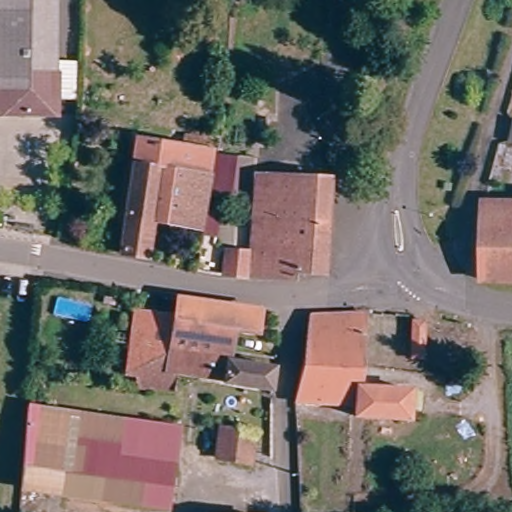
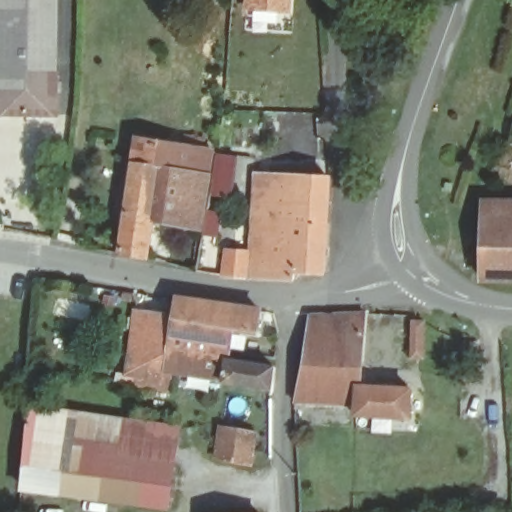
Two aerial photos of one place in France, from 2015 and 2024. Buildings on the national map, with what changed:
unchanged [(53,117),(0,116),(0,0),(55,0),(54,24),(53,117)]
new [(242,0),(292,0),(290,15),(240,12),(242,0)]
unchanged [(192,226),(149,219),(143,255),(115,251),(132,138),(171,143),(173,133),(190,136),(188,146),(205,148),(192,226)]
unchanged [(231,158),(224,197),(203,193),(211,154),(231,158)]
unchanged [(328,278),(254,274),(256,236),(252,236),(256,173),(334,177),(328,278)]
unchanged [(480,279),(480,203),(512,203),(512,280),(480,279)]
unchanged [(205,271),(189,267),(200,211),(213,214),(205,271)]
unchanged [(249,274),(229,273),(230,250),(251,251),(249,274)]
unchanged [(233,354),(171,346),(167,377),(141,373),(131,372),(139,309),(178,314),(181,294),(262,309),(259,328),(237,325),(233,354)]
unchanged [(360,380),(410,382),(407,412),(356,407),(356,403),(296,398),(310,308),(363,309),(360,380)]
unchanged [(423,351),(411,351),(410,310),(422,313),(423,351)]
unchanged [(274,388),(227,382),(228,378),(177,371),(175,392),(139,388),(140,379),(141,373),(167,377),(171,346),(233,354),(233,357),(276,362),(274,388)]
unchanged [(163,506),(24,483),(31,439),(36,405),(176,428),(171,458),(163,506)]
unchanged [(259,431),(256,465),(216,461),(218,425),(259,431)]

